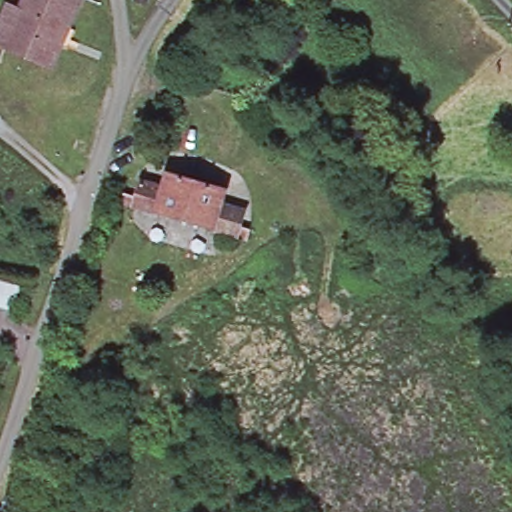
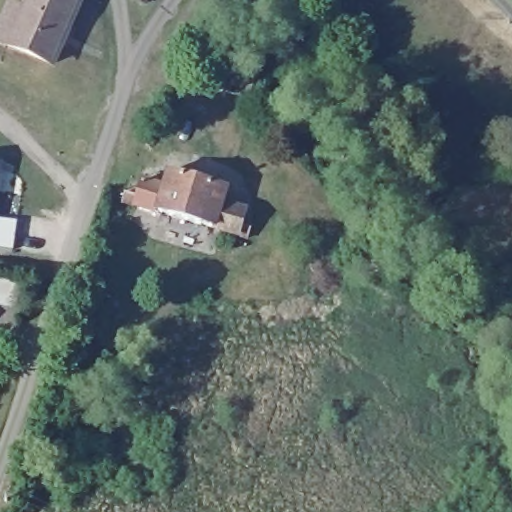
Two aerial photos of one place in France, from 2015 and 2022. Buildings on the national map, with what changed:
unchanged [(60,48),(50,67),(7,48),(8,46),(0,42),(0,30),(10,8),(23,14),(30,0),(82,0),(70,26),(76,29),(67,51),(60,48)]
unchanged [(182,73),(176,91),(166,87),(171,70),(182,73)]
new [(1,162),(0,174),(0,161),(1,162)]
unchanged [(241,241),(248,242),(245,252),(212,240),(162,221),(126,207),(128,199),(136,202),(143,182),(172,192),(179,172),(227,191),(221,209),(248,218),(241,241)]
new [(18,220),(13,250),(0,248),(0,218),(18,220)]

